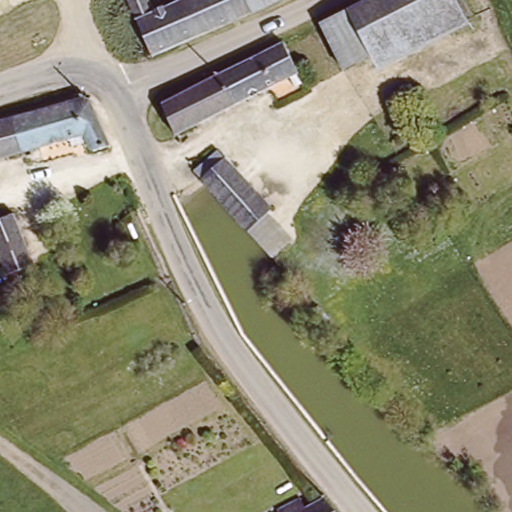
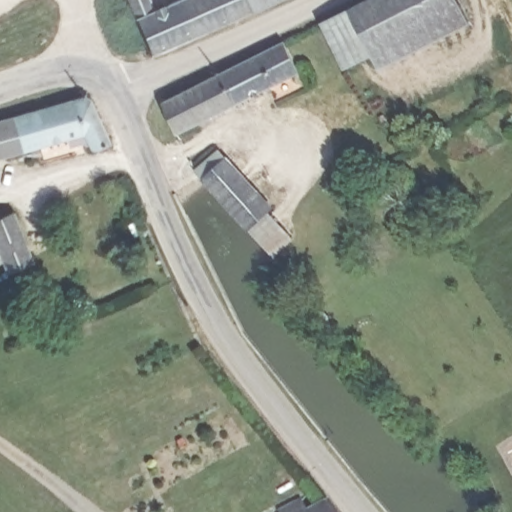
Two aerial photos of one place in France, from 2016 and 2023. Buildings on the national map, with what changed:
unchanged [(131,0),(152,0),(157,12),(183,0),(277,0),(156,59),(131,0)]
unchanged [(381,64),(374,51),(351,7),(365,0),(456,0),(468,20),(381,64)]
unchanged [(374,51),(347,65),(322,22),(351,7),(374,51)]
unchanged [(161,105),(283,46),(297,74),(171,133),(161,105)]
unchanged [(106,134),(88,143),(83,133),(0,159),(0,122),(86,93),(106,134)]
unchanged [(248,229),(202,174),(198,169),(221,149),(271,207),(268,210),(289,236),(276,249),(270,255),(248,229)]
unchanged [(35,264),(9,274),(0,253),(0,218),(1,220),(14,215),(35,264)]
unchanged [(300,499),(309,509),(327,498),(338,512),(278,512),(300,499)]

